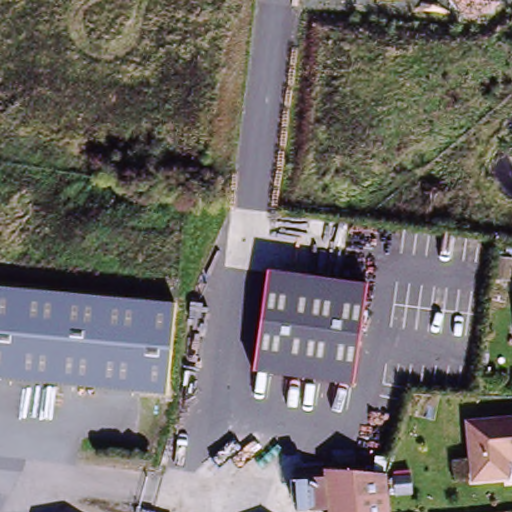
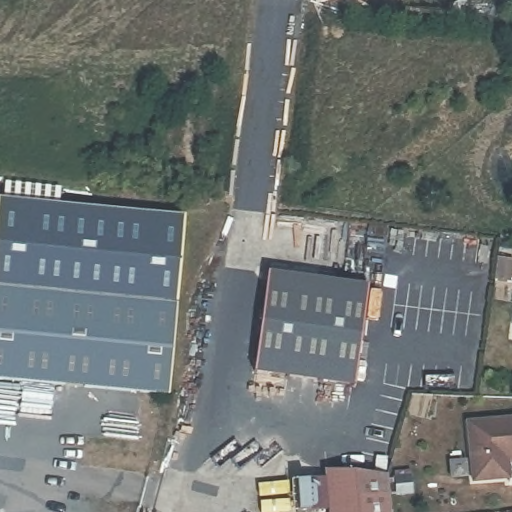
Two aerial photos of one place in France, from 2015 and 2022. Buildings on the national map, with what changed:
new [(174,307),(0,291),(0,197),(183,215),(174,307)]
demolished [(509,246),(512,247),(512,269),(503,266),(509,246)]
unchanged [(268,271),(365,287),(351,389),(250,374),(268,271)]
unchanged [(170,352),(166,397),(0,383),(0,291),(174,307),(170,352)]
unchanged [(505,461),(507,481),(472,484),(465,427),(512,421),(512,460),(505,461)]
unchanged [(387,480),(387,512),(326,512),(324,465),(387,480)]

